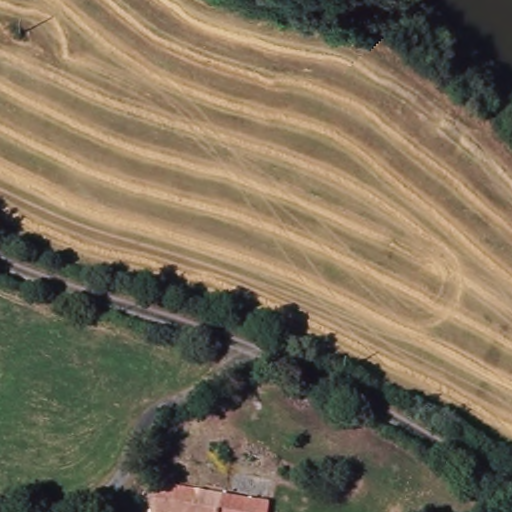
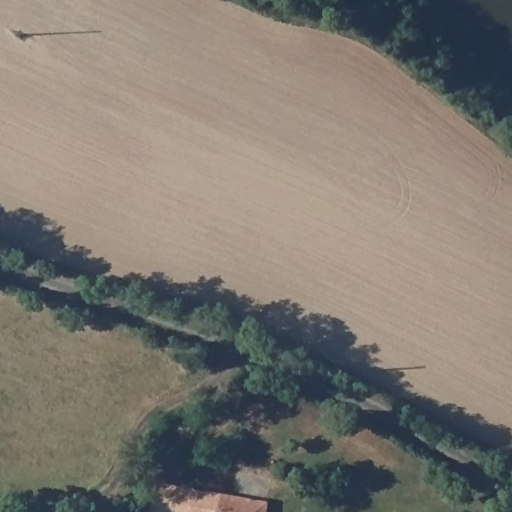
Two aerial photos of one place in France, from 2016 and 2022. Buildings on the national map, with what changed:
unchanged [(159,483),(188,488),(269,503),(268,512),(154,512),(155,506),(159,483)]

